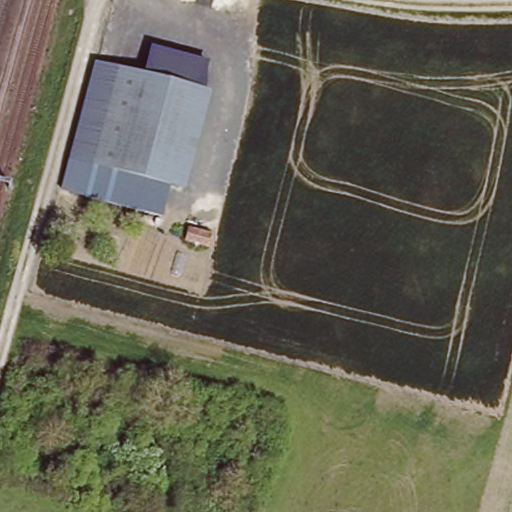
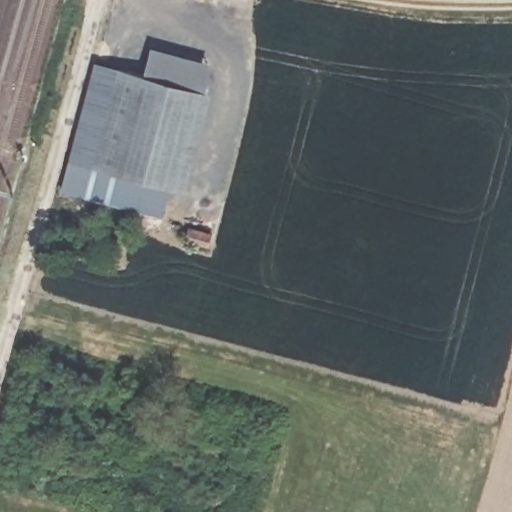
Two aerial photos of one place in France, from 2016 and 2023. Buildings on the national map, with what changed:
unchanged [(142,75),(151,47),(207,64),(200,89),(209,92),(184,191),(170,188),(162,220),(60,192),(94,64),(142,75)]
unchanged [(185,243),(190,224),(213,230),(208,249),(185,243)]

